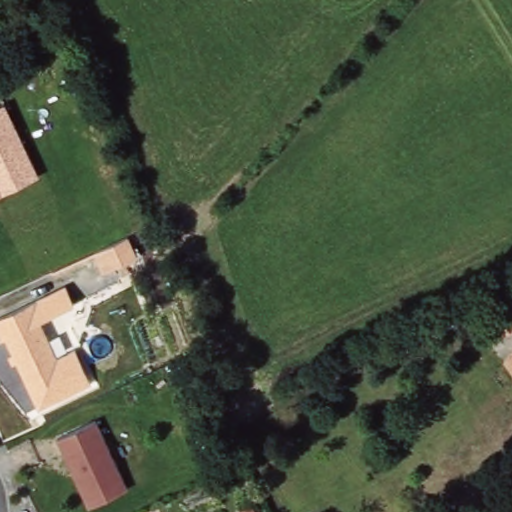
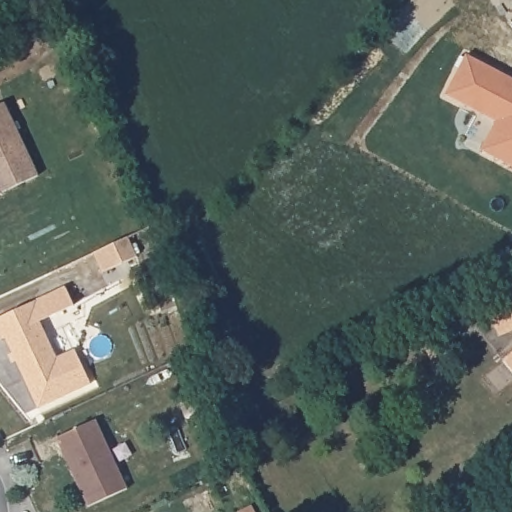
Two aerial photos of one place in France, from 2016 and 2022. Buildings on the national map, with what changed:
new [(466,53),(512,78),(512,164),(482,148),(495,120),(446,92),(466,53)]
unchanged [(0,192),(0,106),(5,104),(39,173),(0,192)]
new [(134,236),(143,255),(110,271),(101,252),(134,236)]
unchanged [(37,409),(3,338),(0,340),(0,318),(62,287),(70,306),(36,322),(54,358),(72,350),(89,383),(37,409)]
unchanged [(484,312),(512,297),(512,337),(500,343),(484,312)]
unchanged [(71,472),(76,470),(67,451),(62,453),(55,439),(93,420),(126,488),(88,507),(71,472)]

